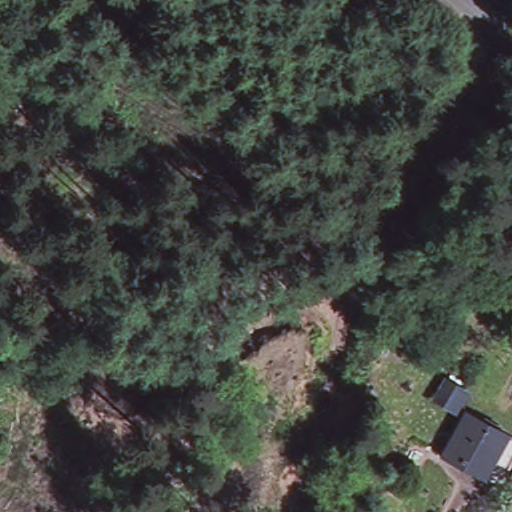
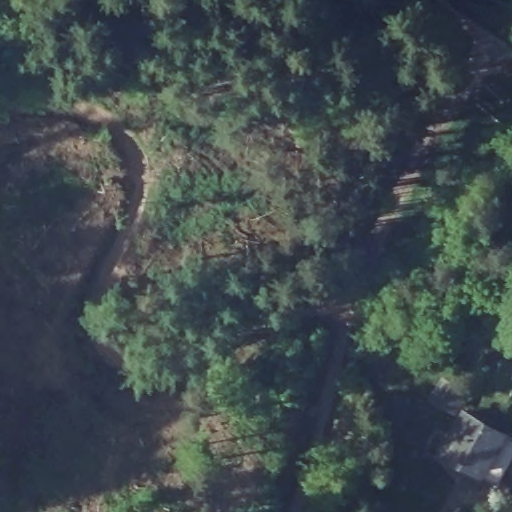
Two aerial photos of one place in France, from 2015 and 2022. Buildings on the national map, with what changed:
unchanged [(453,412),(429,401),(440,376),(462,388),(453,412)]
unchanged [(480,469),(442,449),(462,414),(499,433),(512,441),(512,451),(497,478),(480,469)]

